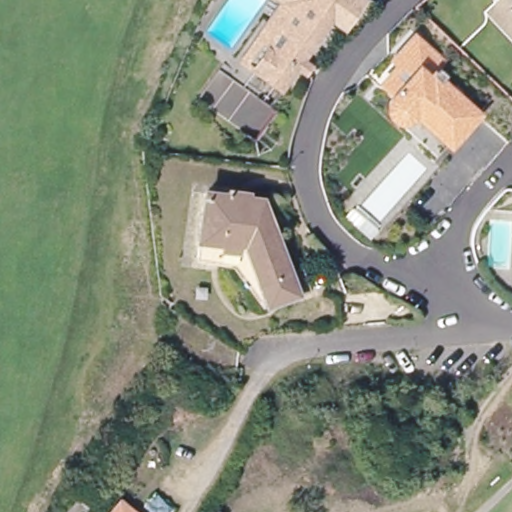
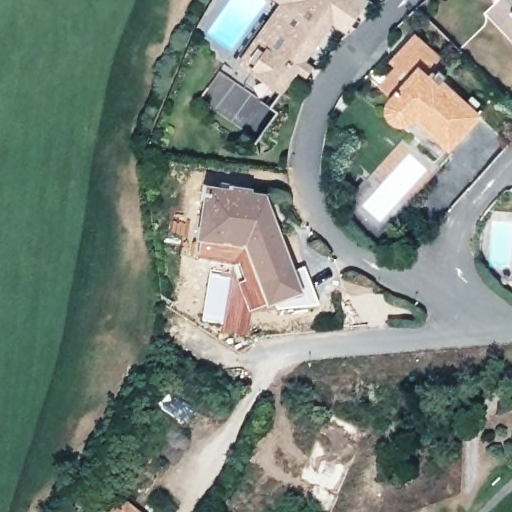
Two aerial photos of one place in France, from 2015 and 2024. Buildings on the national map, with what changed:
unchanged [(256,68),(240,56),(279,0),(301,0),(256,68)]
unchanged [(256,68),(301,0),(364,0),(343,25),(329,18),(281,85),(256,68)]
unchanged [(454,65),(447,73),(453,78),(447,84),(483,117),(455,147),(422,117),(420,120),(416,124),(412,126),(407,126),(403,125),(400,123),(398,119),(396,114),(396,110),(398,107),(399,104),(403,100),(391,89),(408,70),(402,64),(408,57),(424,39),(454,65)]
unchanged [(243,262),(202,255),(211,189),(233,192),(233,186),(256,188),(256,195),(270,196),(279,219),(298,268),(309,265),(316,284),(275,299),(271,302),(243,262)]
unchanged [(130,512),(115,512),(121,504),(130,512)]

